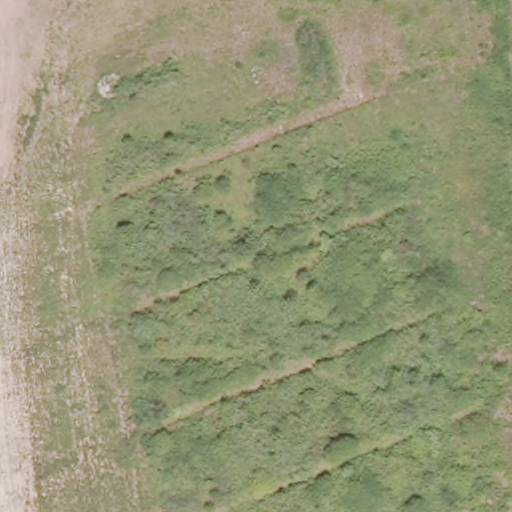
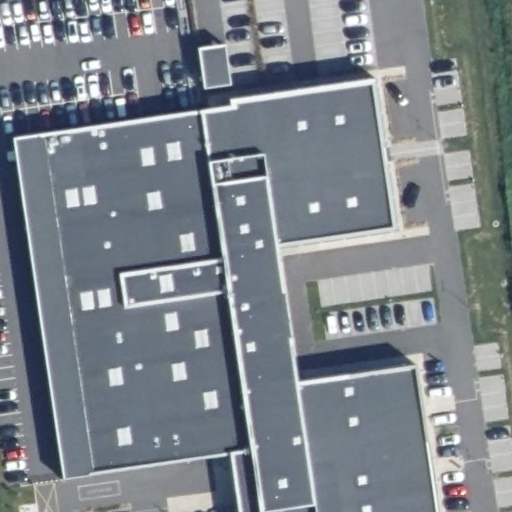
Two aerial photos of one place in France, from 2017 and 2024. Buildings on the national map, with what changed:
new [(227,43),(233,84),(205,87),(200,46),(227,43)]
new [(92,474),(75,355),(42,133),(231,105),(230,98),(377,77),(399,230),(278,249),(295,362),(299,381),(408,365),(419,365),(441,512),(241,512),(232,453),(92,474)]
new [(92,474),(65,478),(15,137),(42,133),(92,474)]

